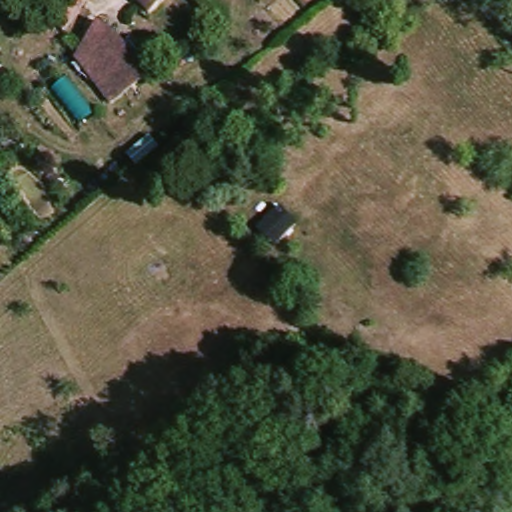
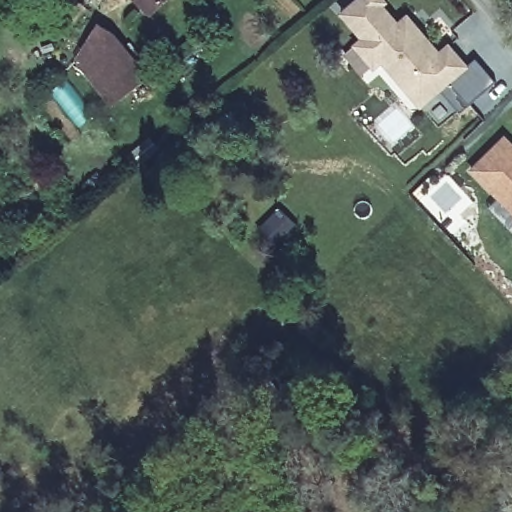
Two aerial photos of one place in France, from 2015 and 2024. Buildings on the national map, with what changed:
unchanged [(86,11),(64,37),(49,21),(70,0),(75,0),(86,11)]
unchanged [(150,12),(137,0),(161,0),(150,12)]
new [(409,86),(386,61),(378,68),(360,46),(367,39),(346,14),(363,0),(388,0),(390,2),(386,5),(402,24),(412,16),(421,27),(445,54),(453,46),(471,66),(444,89),(425,106),(409,86)]
unchanged [(128,93),(120,84),(104,97),(76,60),(91,48),(99,31),(118,41),(144,79),(142,81),(130,91),(128,93)]
new [(508,139),(512,143),(512,209),(475,172),(508,139)]
new [(282,211),(299,227),(286,240),(279,249),(261,233),(270,224),(282,211)]

